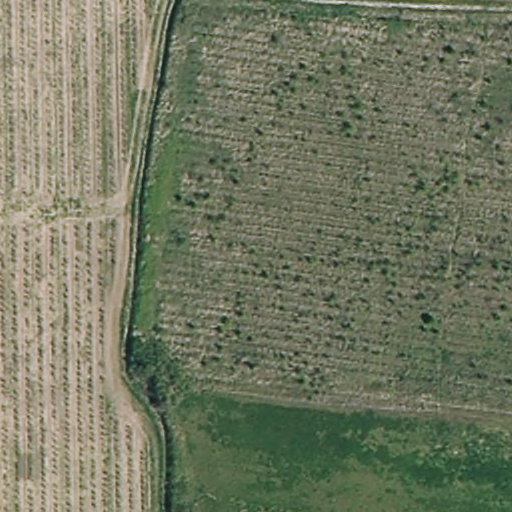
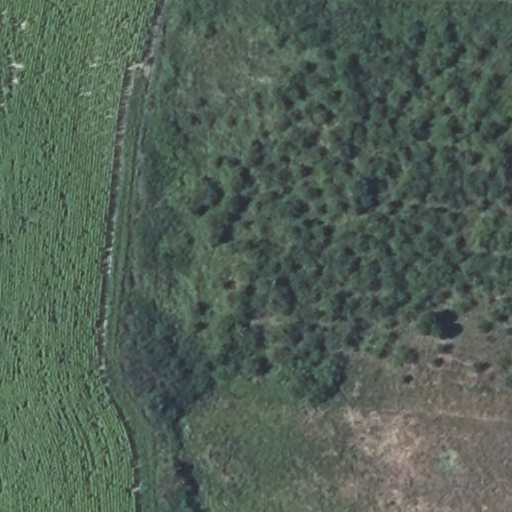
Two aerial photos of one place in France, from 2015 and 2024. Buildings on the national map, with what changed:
[]

